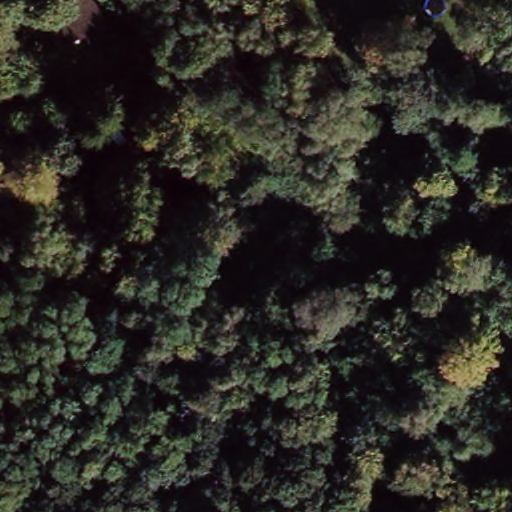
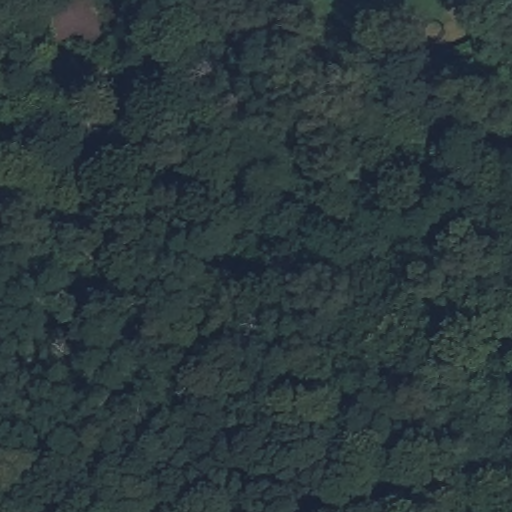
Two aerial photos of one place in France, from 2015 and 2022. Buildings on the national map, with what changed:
unchanged [(51,21),(67,15),(68,0),(90,0),(92,35),(51,41),(51,21)]

